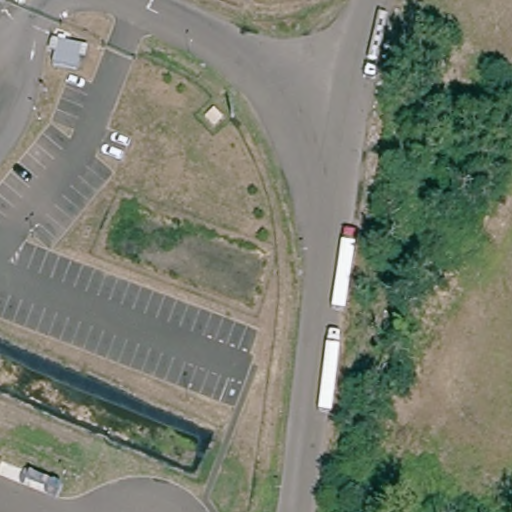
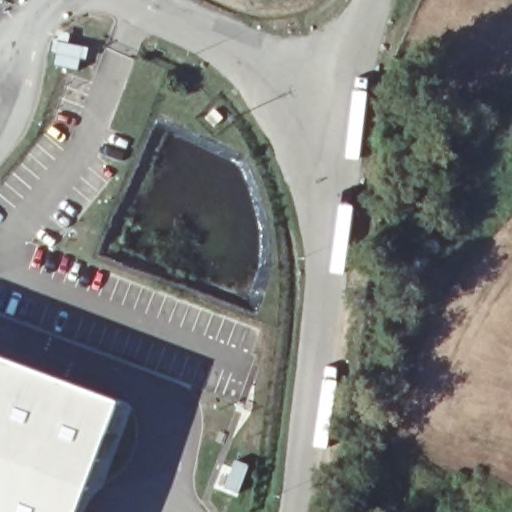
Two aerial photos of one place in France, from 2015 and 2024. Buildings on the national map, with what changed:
new [(78,512),(0,512),(0,354),(121,400),(78,512)]

